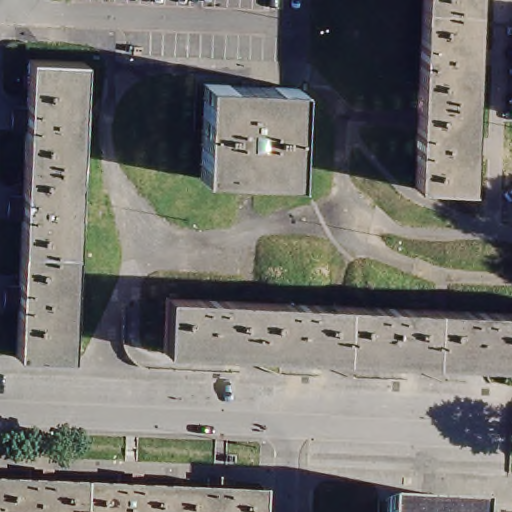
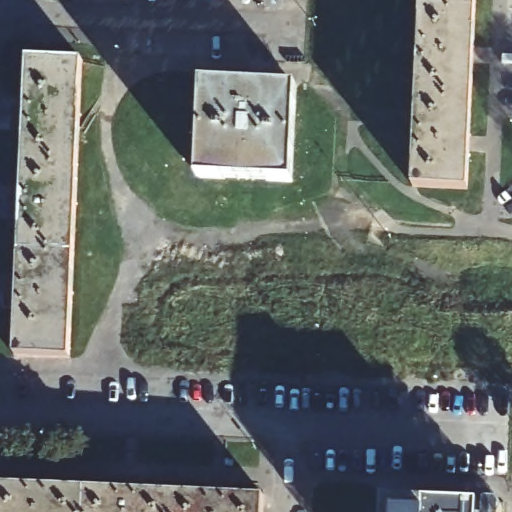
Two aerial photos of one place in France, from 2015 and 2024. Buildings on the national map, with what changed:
unchanged [(407,183),(414,0),(469,0),(462,185),(407,183)]
unchanged [(82,56),(68,354),(13,351),(15,314),(16,304),(3,304),(5,279),(17,280),(20,214),(7,214),(8,190),(21,191),(24,125),(11,124),(12,100),(25,101),(27,54),(82,56)]
unchanged [(242,79),(242,74),(257,74),(257,80),(295,81),(292,177),(198,174),(202,78),(242,79)]
demolished [(512,362),(157,347),(158,293),(512,307),(512,362)]
unchanged [(22,481),(22,469),(46,470),(46,482),(110,485),(110,474),(135,474),(135,487),(200,489),(200,478),(223,479),(223,490),(257,492),(257,512),(0,512),(0,480),(22,481)]
unchanged [(478,512),(383,512),(384,497),(406,498),(422,499),(422,492),(438,493),(438,499),(478,501),(478,512)]

